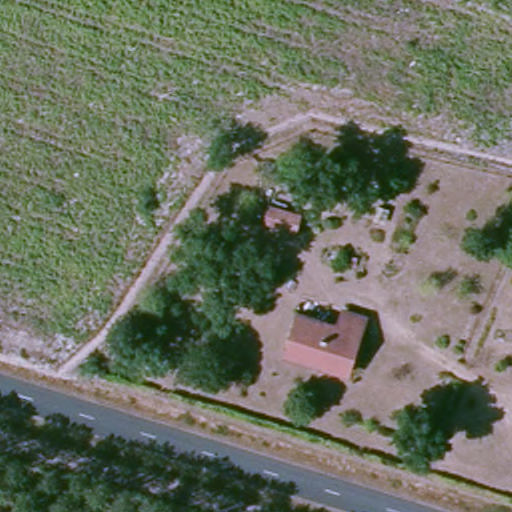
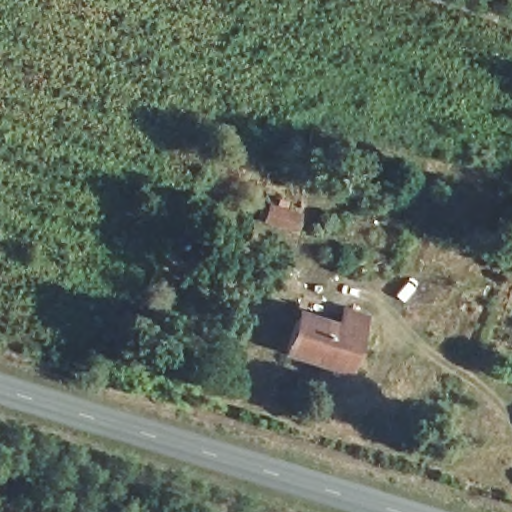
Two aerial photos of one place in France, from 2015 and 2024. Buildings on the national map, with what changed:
unchanged [(397,207),(384,244),(364,237),(374,200),(397,207)]
unchanged [(331,327),(341,309),(366,316),(345,377),(275,355),(288,309),(331,327)]

